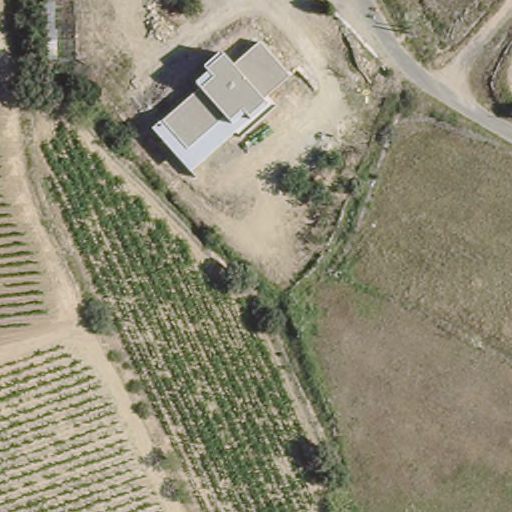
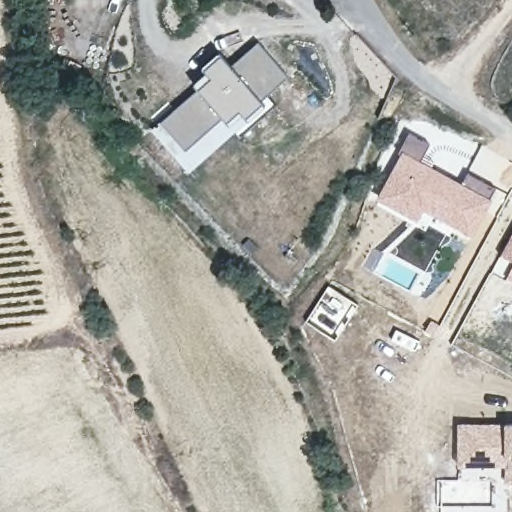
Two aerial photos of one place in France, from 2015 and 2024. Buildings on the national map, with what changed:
unchanged [(239,136),(233,133),(189,171),(152,129),(162,121),(199,88),(211,77),(205,70),(222,55),(231,66),(258,42),(288,77),(266,96),(274,105),(239,136)]
new [(495,188),(471,233),(456,225),(449,235),(421,221),(417,227),(376,205),(403,156),(399,154),(410,132),(431,145),(419,168),(427,172),(429,167),(462,185),(467,173),(495,188)]
new [(512,422),(512,479),(506,480),(506,465),(457,465),(457,423),(512,422)]

